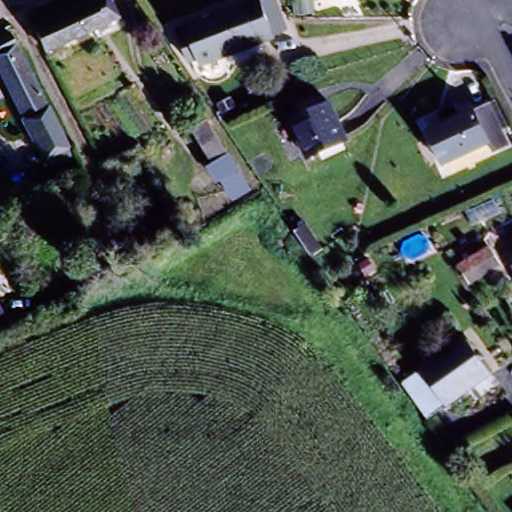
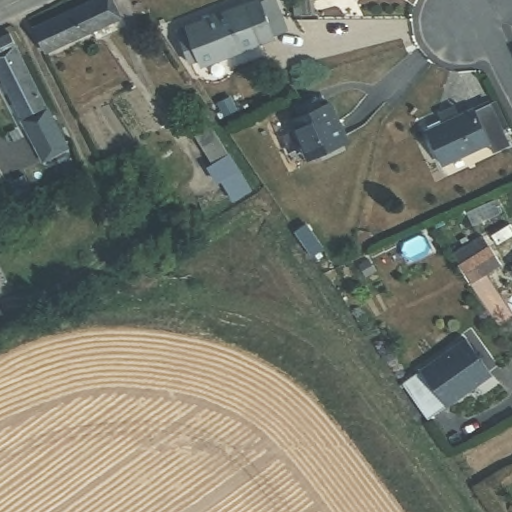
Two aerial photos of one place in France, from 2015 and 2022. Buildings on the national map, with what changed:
unchanged [(34,23),(83,0),(113,0),(119,13),(46,47),(34,23)]
unchanged [(201,61),(198,54),(188,58),(176,25),(244,0),(262,0),(262,1),(274,33),(201,61)]
unchanged [(66,144),(42,156),(0,70),(0,34),(9,28),(66,144)]
unchanged [(346,141),(308,158),(291,120),(301,115),(296,106),(314,97),(319,107),(329,103),(346,141)]
unchanged [(496,129),(503,145),(488,152),(484,143),(437,165),(421,130),(438,123),(434,113),(449,106),(453,115),(468,108),(468,110),(484,103),(485,104),(489,102),(492,109),(501,127),(496,129)]
unchanged [(250,190),(234,200),(222,180),(218,182),(209,167),(213,165),(191,129),(207,120),(250,190)]
unchanged [(323,249),(312,256),(311,256),(303,245),(294,231),(306,224),(323,249)]
unchanged [(470,282),(459,265),(489,246),(500,264),(470,282)]
unchanged [(2,313),(0,315),(0,310),(2,313)]
unchanged [(402,384),(466,339),(491,374),(427,419),(402,384)]

